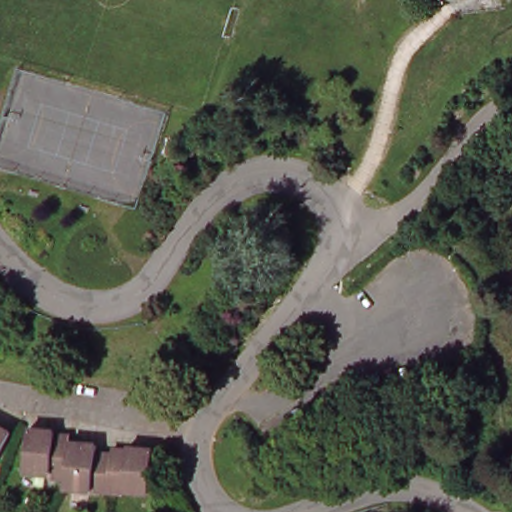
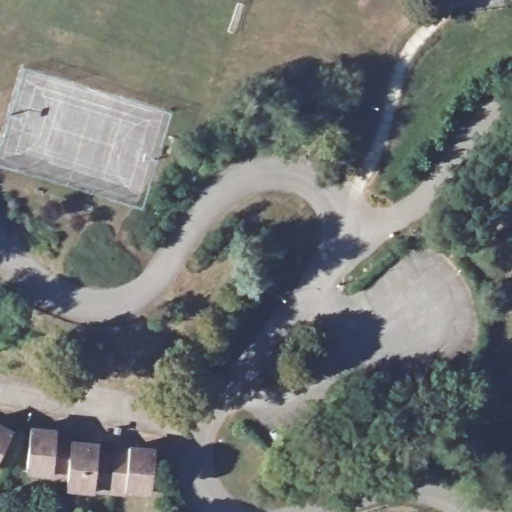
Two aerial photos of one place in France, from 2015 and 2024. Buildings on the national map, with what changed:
unchanged [(0,450),(0,424),(12,432),(0,450)]
unchanged [(53,433),(70,436),(69,440),(97,445),(97,453),(109,454),(110,448),(125,450),(125,446),(152,451),(145,499),(64,487),(65,480),(47,477),(48,473),(24,468),(30,425),(54,428),(53,433)]

